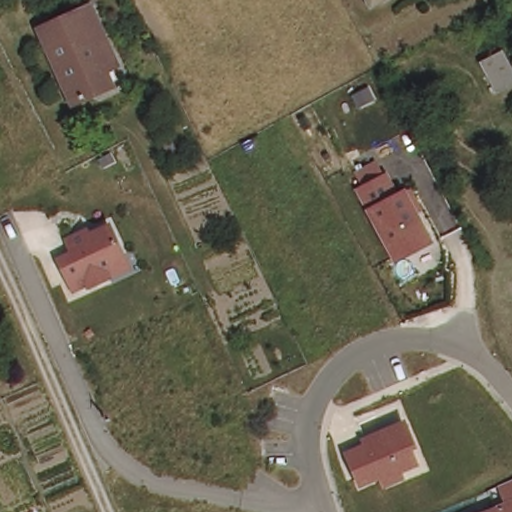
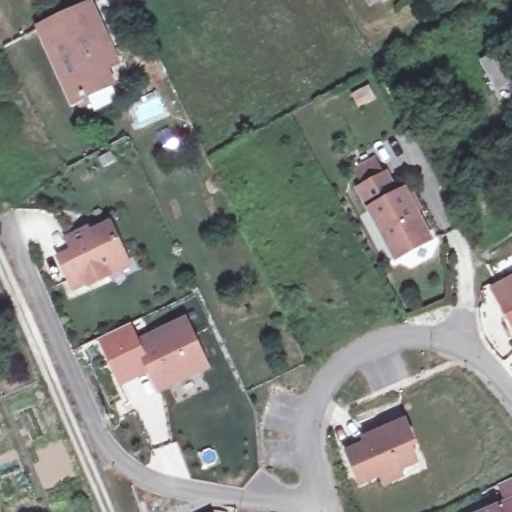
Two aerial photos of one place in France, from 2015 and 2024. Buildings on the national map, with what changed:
unchanged [(107,84),(68,102),(42,44),(50,41),(42,24),(85,6),(99,37),(111,64),(106,66),(100,69),(107,84)]
unchanged [(512,71),(512,78),(498,85),(484,59),(500,49),(512,71)]
unchanged [(382,173),(388,169),(399,192),(408,187),(436,242),(398,264),(357,188),(361,186),(354,170),(375,159),(382,173)]
unchanged [(76,291),(57,245),(70,239),(68,230),(107,215),(129,268),(76,291)]
new [(490,288),(512,276),(512,328),(490,288)]
new [(187,320),(208,367),(160,390),(138,343),(187,320)]
new [(121,386),(100,339),(133,323),(141,342),(138,343),(151,371),(121,386)]
unchanged [(421,449),(416,450),(421,466),(406,472),(407,478),(383,487),(380,479),(361,487),(344,450),(365,442),(363,436),(407,419),(421,449)]
unchanged [(491,512),(506,506),(499,484),(512,478),(512,512),(491,512)]

